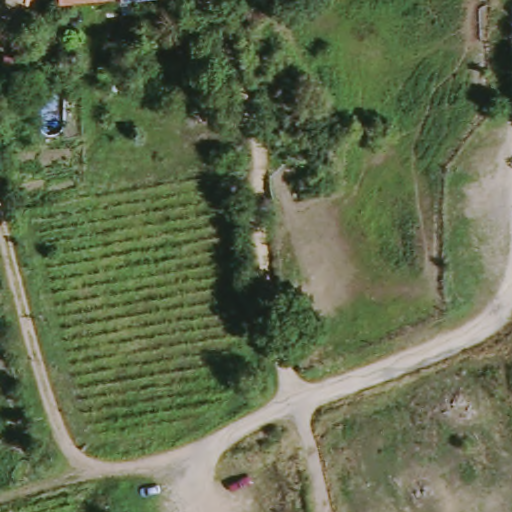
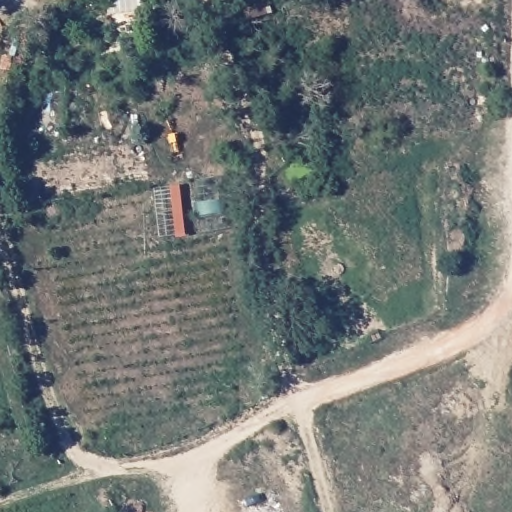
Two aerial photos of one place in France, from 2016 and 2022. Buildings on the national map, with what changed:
unchanged [(67,0),(115,0),(67,4),(67,0)]
unchanged [(25,58),(22,72),(11,69),(15,55),(25,58)]

